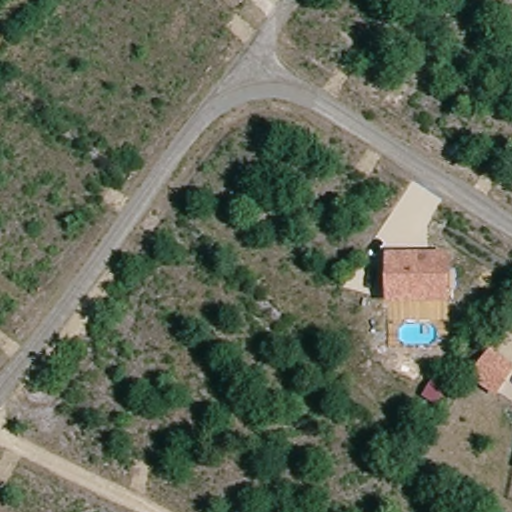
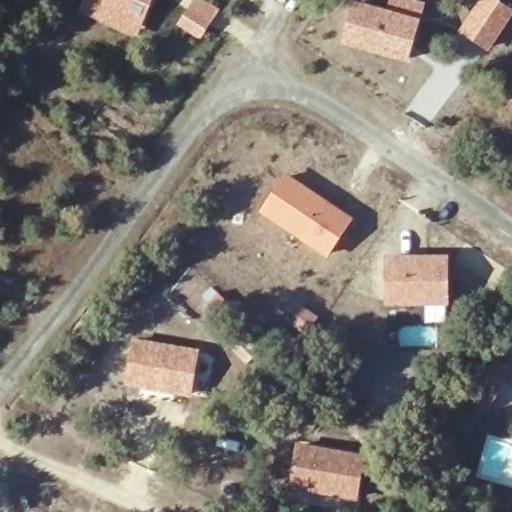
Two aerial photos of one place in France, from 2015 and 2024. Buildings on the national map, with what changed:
new [(82,0),(153,0),(135,39),(77,12),(82,0)]
new [(189,0),(208,0),(220,8),(200,41),(175,24),(189,0)]
new [(342,44),(353,0),(355,0),(422,18),(409,63),(342,44)]
new [(491,52),(461,32),(481,0),(499,0),(512,9),(512,12),(510,23),(491,52)]
new [(284,172),(354,218),(326,258),(258,212),(284,172)]
unchanged [(452,254),(452,304),(386,306),(385,255),(452,254)]
new [(302,305),(320,318),(307,338),(289,325),(302,305)]
new [(131,336),(200,349),(190,398),(121,387),(131,336)]
unchanged [(512,378),(497,401),(467,377),(489,347),(512,365),(512,378)]
new [(294,441),(367,455),(357,503),(286,491),(294,441)]

